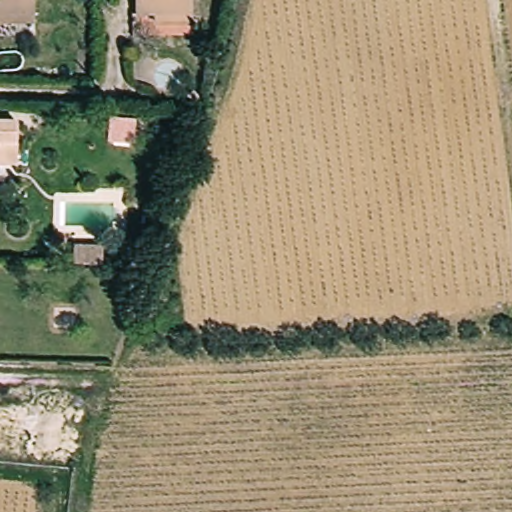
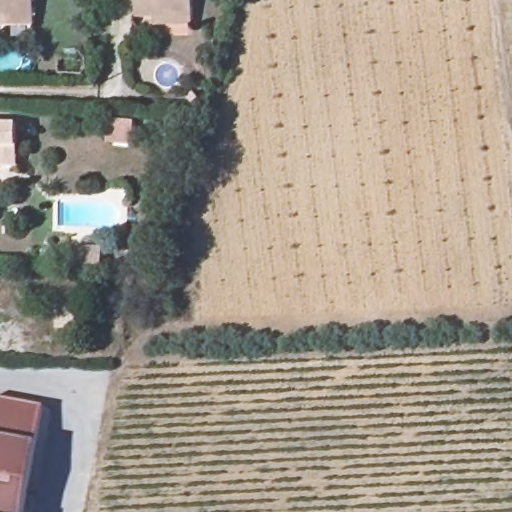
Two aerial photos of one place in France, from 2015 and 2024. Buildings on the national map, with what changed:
unchanged [(0,10),(0,0),(40,0),(40,11),(0,10)]
unchanged [(138,10),(138,0),(194,0),(194,11),(138,10)]
unchanged [(23,165),(1,164),(0,164),(0,119),(23,120),(23,165)]
new [(33,450),(23,512),(0,512),(0,401),(43,410),(33,450)]

